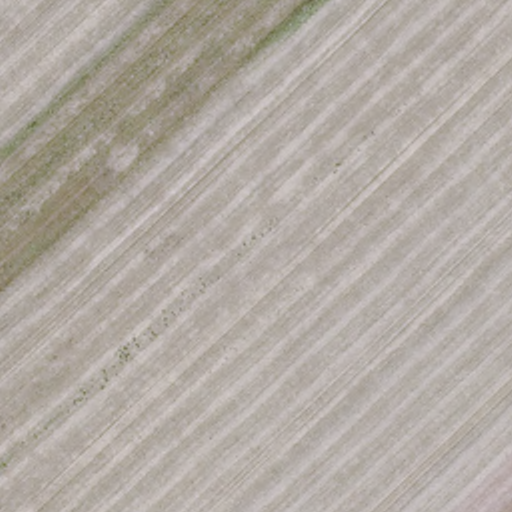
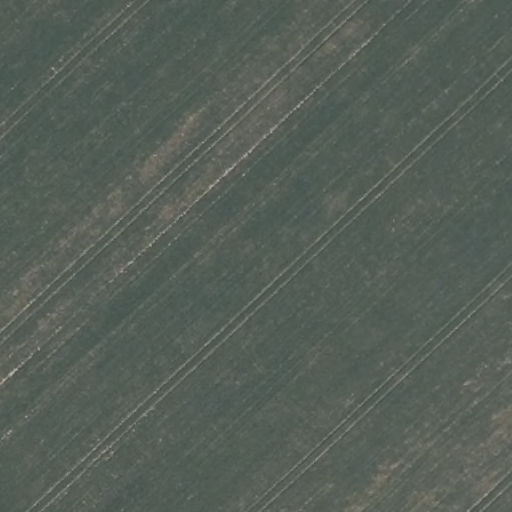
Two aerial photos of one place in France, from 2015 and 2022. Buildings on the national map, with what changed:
[]

